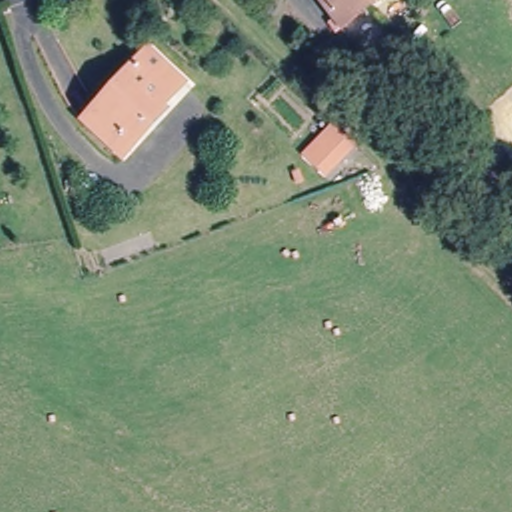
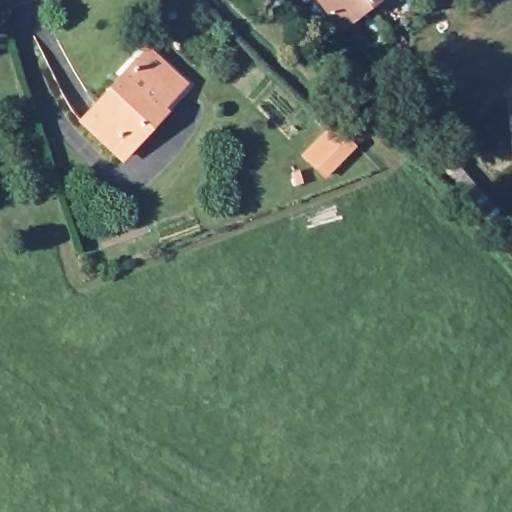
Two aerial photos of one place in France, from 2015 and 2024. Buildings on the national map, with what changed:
unchanged [(313,0),(377,0),(334,30),(313,0)]
unchanged [(191,92),(179,104),(128,57),(139,45),(191,92)]
unchanged [(140,143),(145,149),(129,164),(75,115),(128,57),(179,104),(140,143)]
unchanged [(305,155),(329,131),(336,124),(347,135),(357,145),(350,153),(326,177),(305,155)]

